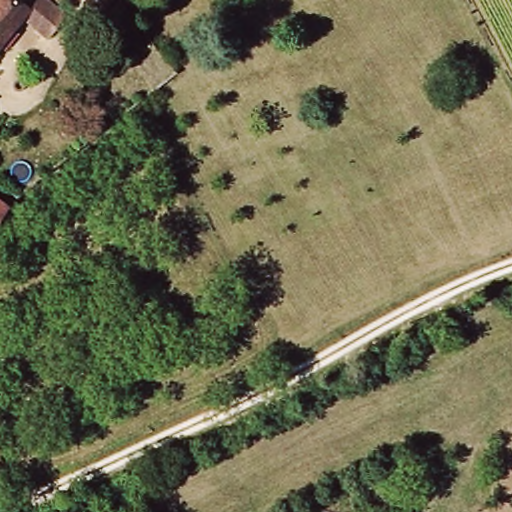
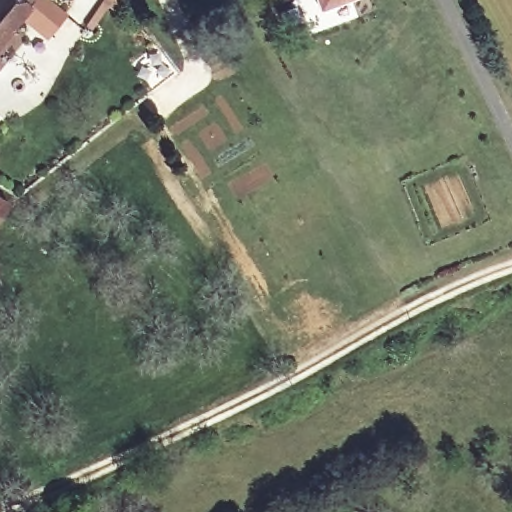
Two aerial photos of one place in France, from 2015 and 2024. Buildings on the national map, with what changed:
unchanged [(61,18),(43,38),(28,24),(0,52),(0,0),(43,0),(61,18)]
new [(319,13),(315,0),(356,0),(319,13)]
unchanged [(0,222),(0,199),(11,205),(0,222)]

